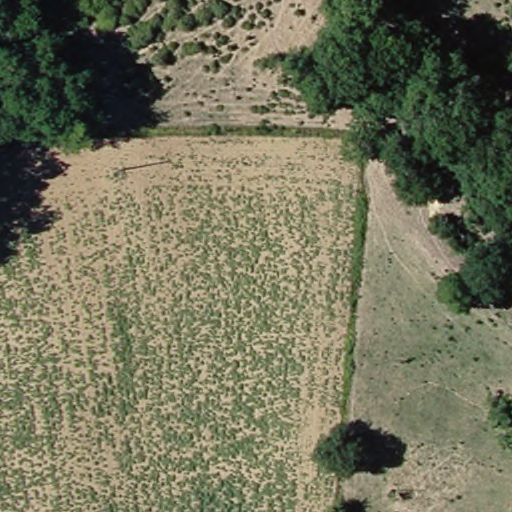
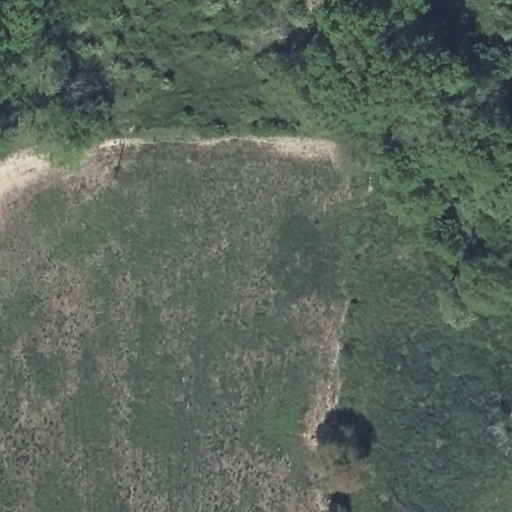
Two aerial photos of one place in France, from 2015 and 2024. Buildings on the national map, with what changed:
[]

